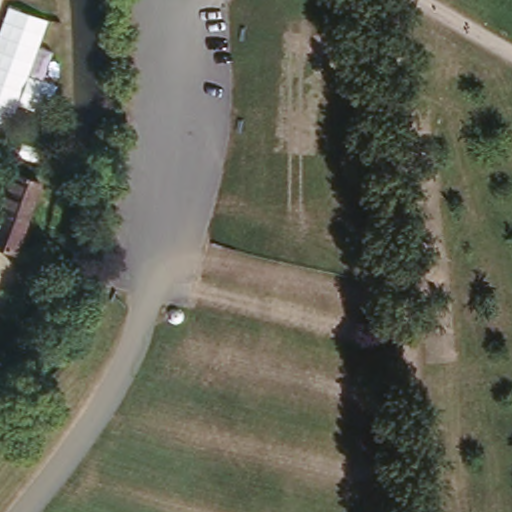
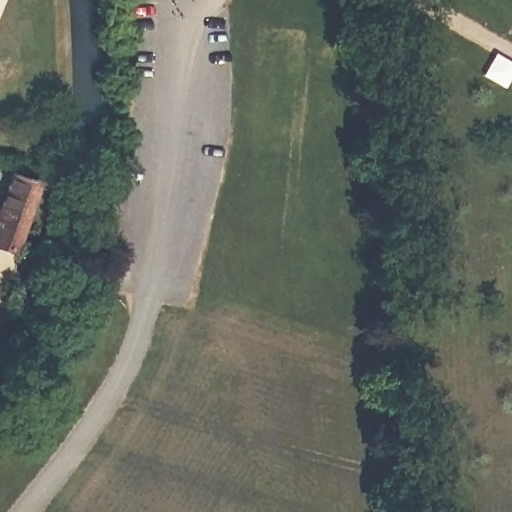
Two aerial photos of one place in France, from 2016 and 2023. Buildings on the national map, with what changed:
demolished [(50,15),(7,126),(0,123),(0,26),(10,1),(50,15)]
unchanged [(15,172),(45,181),(19,257),(0,250),(0,216),(15,172)]

